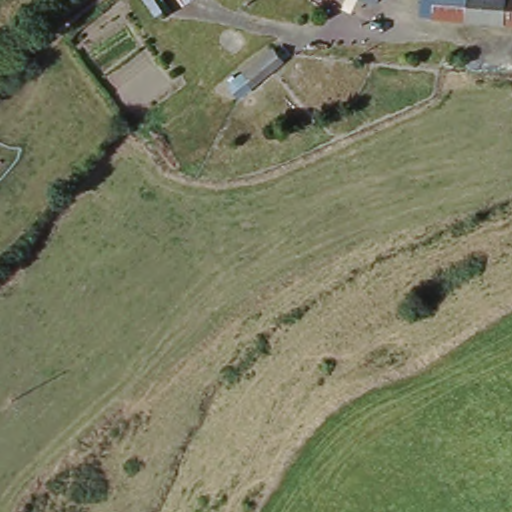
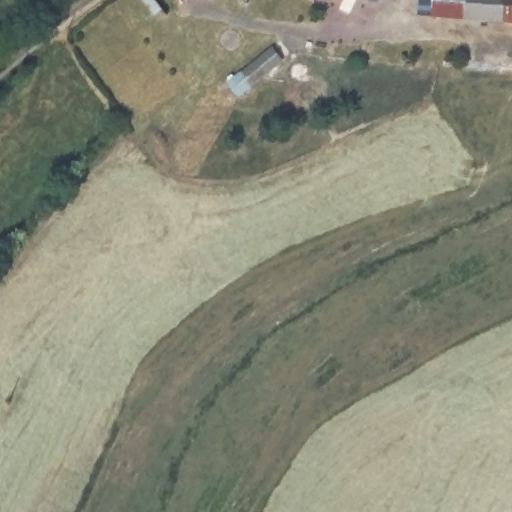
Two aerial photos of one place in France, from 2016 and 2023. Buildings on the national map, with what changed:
unchanged [(166,17),(151,0),(187,0),(166,17)]
unchanged [(387,8),(366,0),(390,0),(387,8)]
unchanged [(422,18),(423,0),(512,0),(512,25),(422,18)]
unchanged [(286,62),(242,100),(232,89),(277,50),(286,62)]

